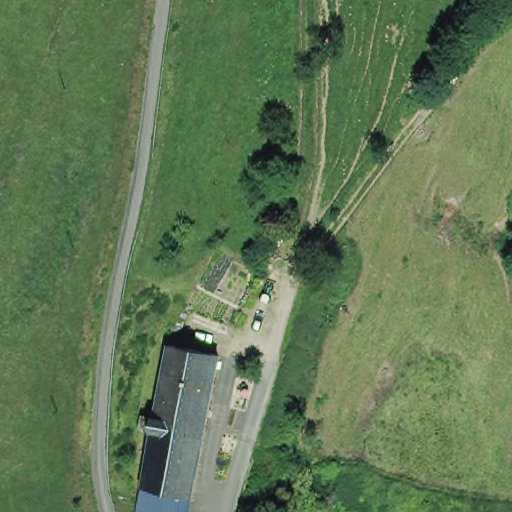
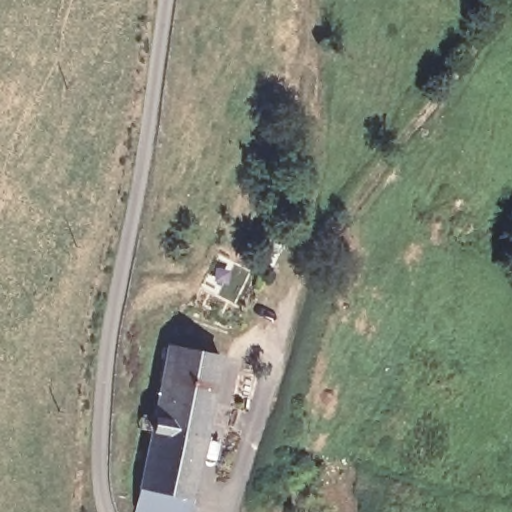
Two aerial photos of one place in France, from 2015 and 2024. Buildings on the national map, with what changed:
unchanged [(151,494),(140,492),(166,348),(216,360),(189,502),(187,512),(148,512),(151,494)]

